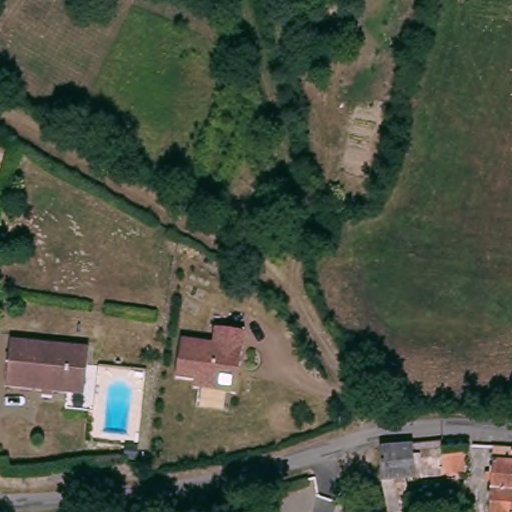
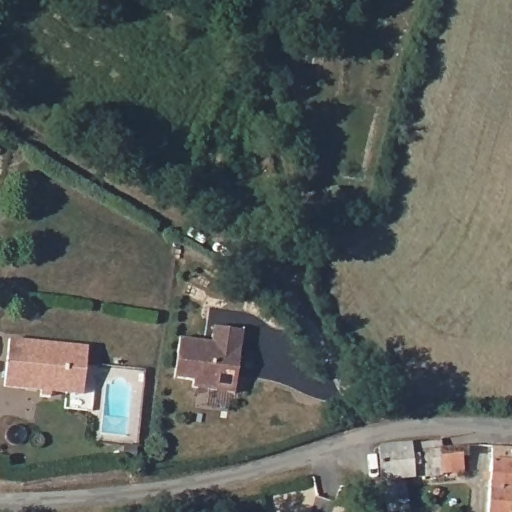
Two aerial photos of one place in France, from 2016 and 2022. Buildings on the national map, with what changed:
unchanged [(212,337),(213,336),(215,324),(250,329),(249,348),(243,347),(238,394),(195,387),(196,376),(176,373),(181,333),(212,337)]
unchanged [(84,349),(81,396),(2,392),(5,344),(84,349)]
unchanged [(443,442),(460,442),(463,473),(446,474),(435,476),(408,478),(411,508),(393,509),(384,478),(382,447),(443,442)]
unchanged [(512,484),(510,484),(511,457),(512,444),(512,484)]
unchanged [(490,455),(511,457),(510,484),(512,484),(512,512),(486,512),(490,455)]

